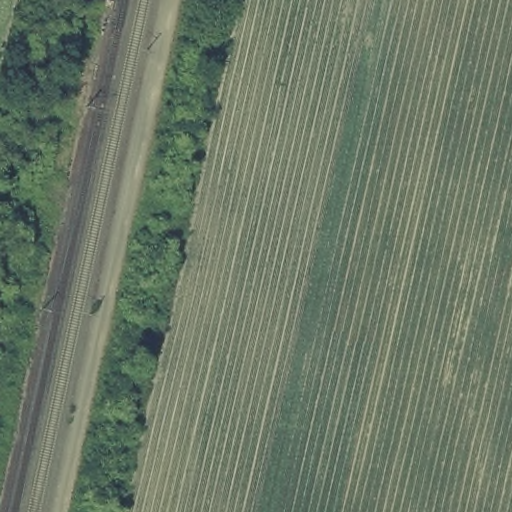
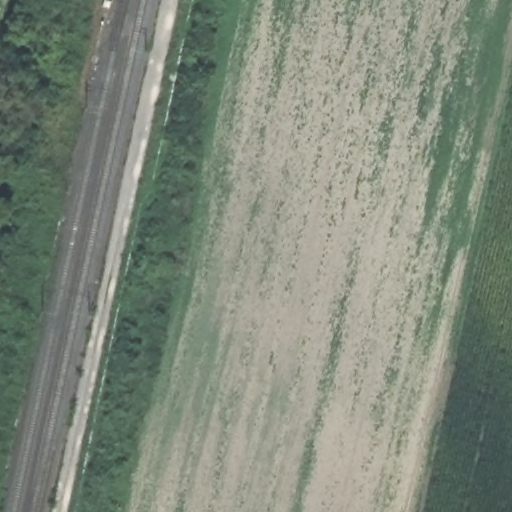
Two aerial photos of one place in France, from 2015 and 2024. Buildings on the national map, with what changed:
[]

